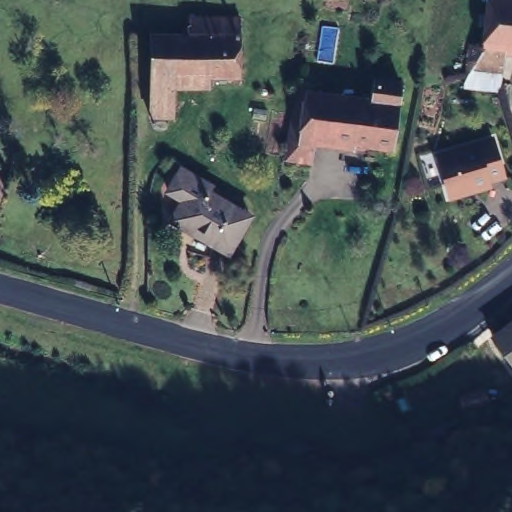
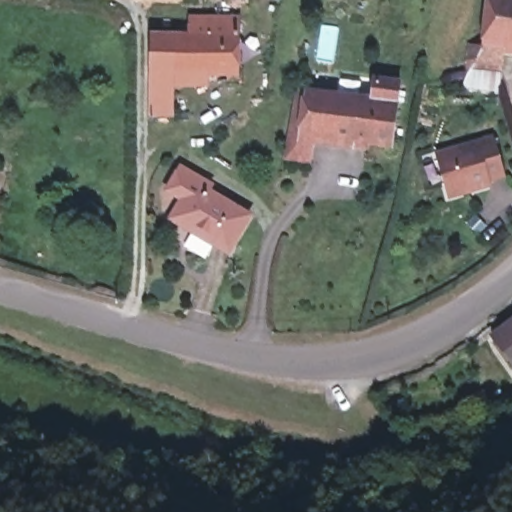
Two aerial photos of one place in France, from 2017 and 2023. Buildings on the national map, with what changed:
unchanged [(502,46),(498,89),(465,87),(472,0),(512,0),(512,47),(502,46)]
unchanged [(181,42),(181,24),(230,25),(230,81),(163,79),(160,121),(141,119),(143,41),(181,42)]
unchanged [(286,152),(292,126),(300,86),(373,96),(375,77),(400,77),(392,141),(351,137),(352,134),(326,131),(322,158),(286,152)]
unchanged [(479,140),(480,141),(495,137),(506,177),(489,182),(491,188),(448,201),(438,152),(479,140)]
unchanged [(182,200),(166,190),(182,167),(212,186),(208,192),(246,216),(222,252),(169,220),(182,200)]
unchanged [(486,327),(508,312),(505,306),(510,302),(512,305),(512,358),(486,327)]
unchanged [(487,392),(491,407),(467,414),(463,400),(487,392)]

